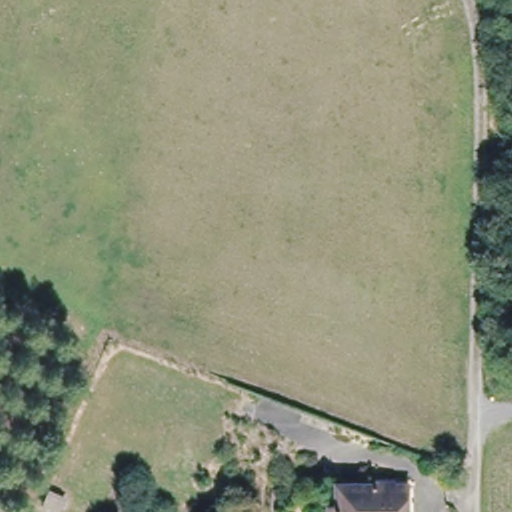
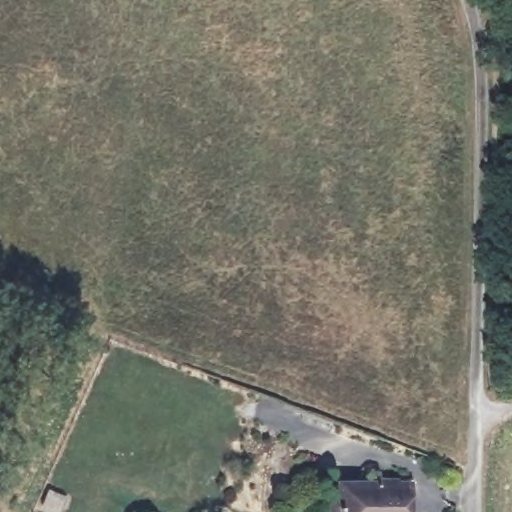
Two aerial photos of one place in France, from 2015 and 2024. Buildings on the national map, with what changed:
unchanged [(334,477),(405,476),(405,512),(336,512),(336,496),(334,477)]
unchanged [(73,493),(88,498),(85,509),(69,503),(73,493)]
unchanged [(336,512),(324,512),(324,496),(336,496),(336,512)]

